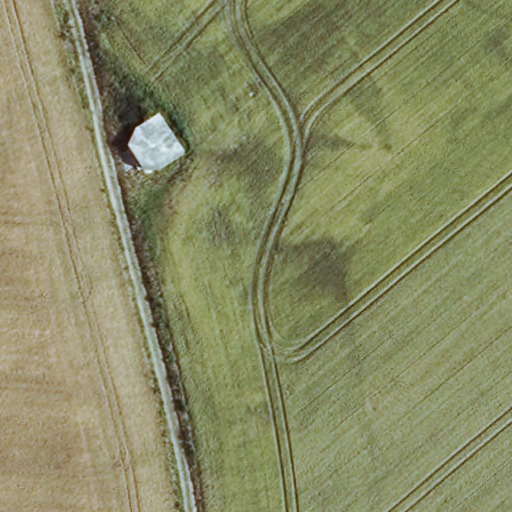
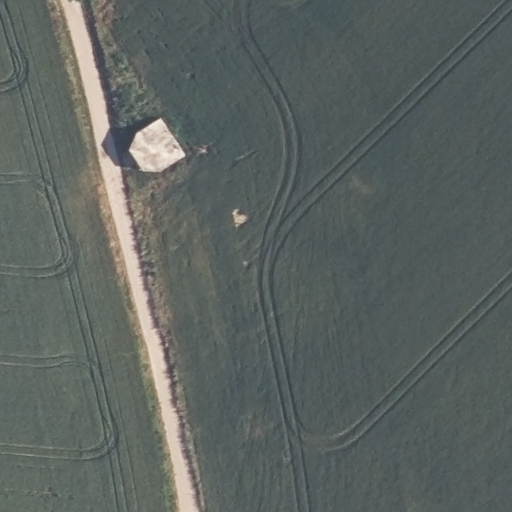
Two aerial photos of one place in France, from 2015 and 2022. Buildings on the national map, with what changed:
unchanged [(183,152),(158,168),(137,167),(127,148),(137,128),(162,117),(183,152)]

